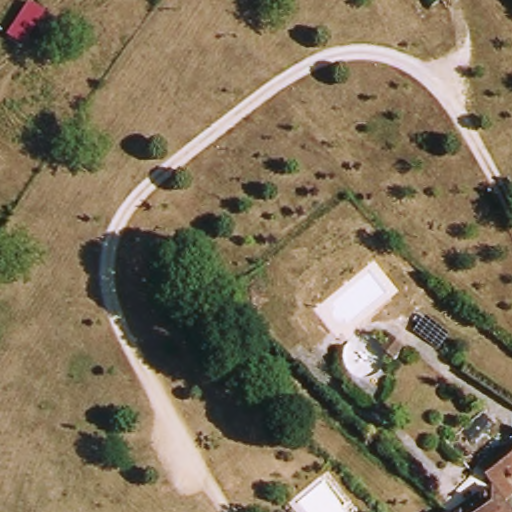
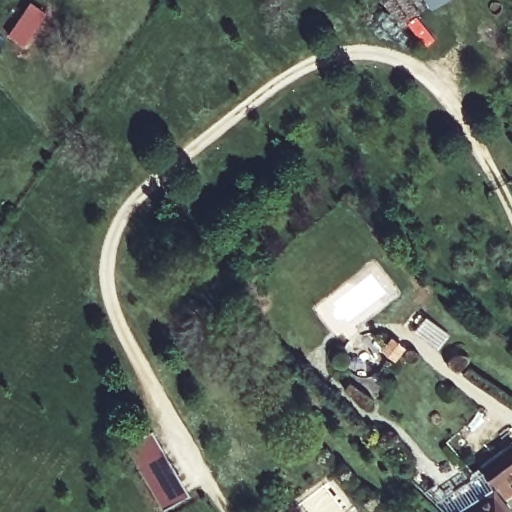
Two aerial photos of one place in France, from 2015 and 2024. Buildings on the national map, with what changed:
unchanged [(431,5),(427,0),(440,0),(431,5)]
unchanged [(394,355),(382,347),(391,333),(404,343),(394,355)]
demolished [(427,374),(415,366),(424,352),(437,362),(427,374)]
new [(189,495),(164,511),(129,447),(153,432),(189,495)]
unchanged [(481,477),(512,452),(512,504),(503,510),(504,512),(465,512),(492,493),(481,477)]

